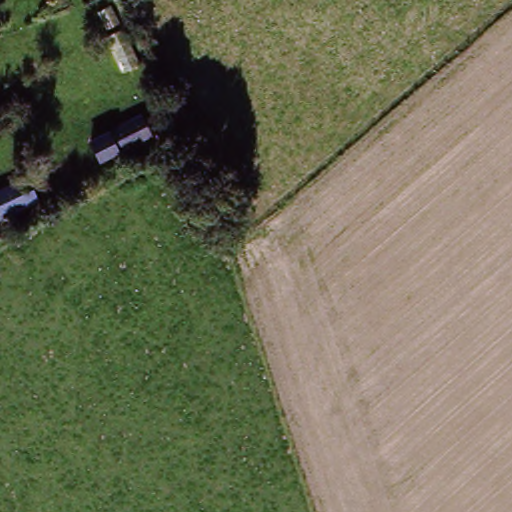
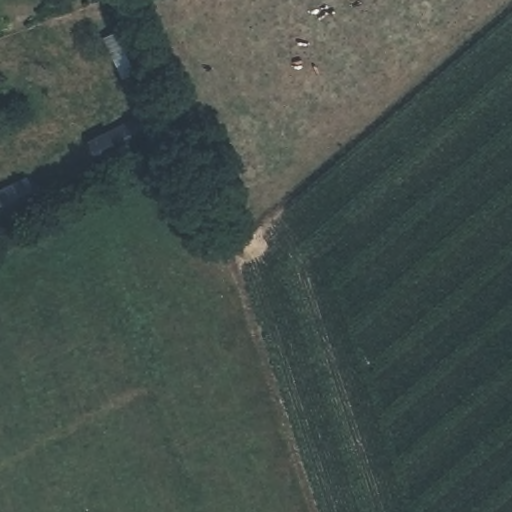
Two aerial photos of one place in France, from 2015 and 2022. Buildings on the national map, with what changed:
[]

